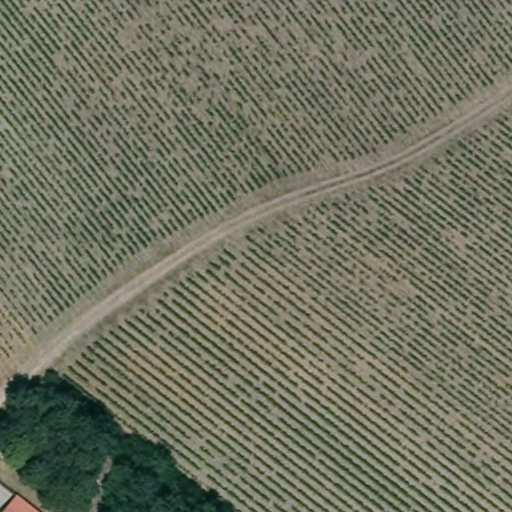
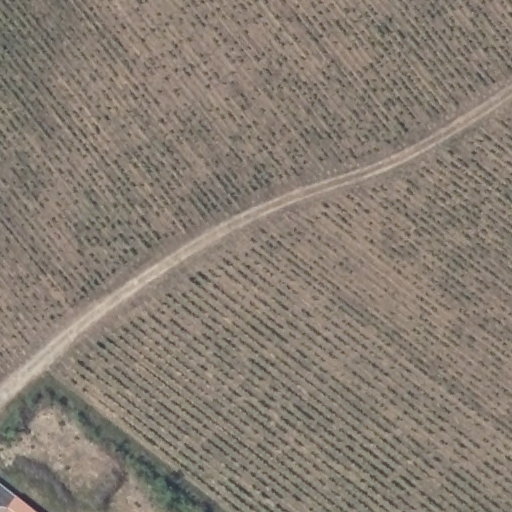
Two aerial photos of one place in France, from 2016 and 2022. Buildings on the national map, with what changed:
unchanged [(12,507),(20,498),(37,512),(8,512),(12,507)]

